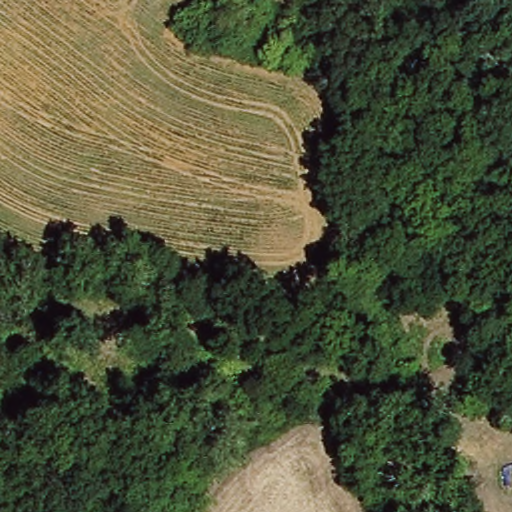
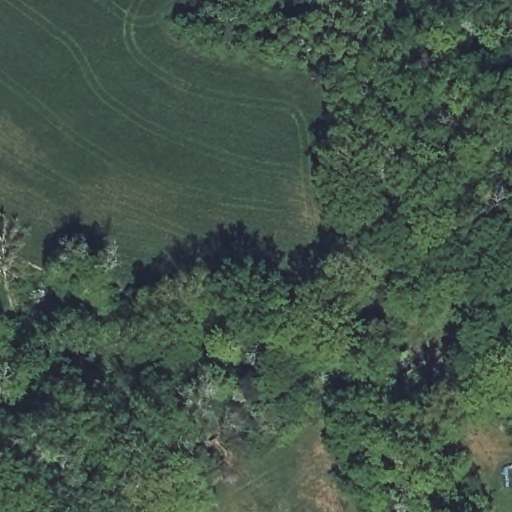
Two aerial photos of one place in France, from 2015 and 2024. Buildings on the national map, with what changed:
unchanged [(226,52),(198,50),(198,28),(225,30),(226,52)]
unchanged [(330,72),(286,69),(288,36),(331,38),(330,72)]

